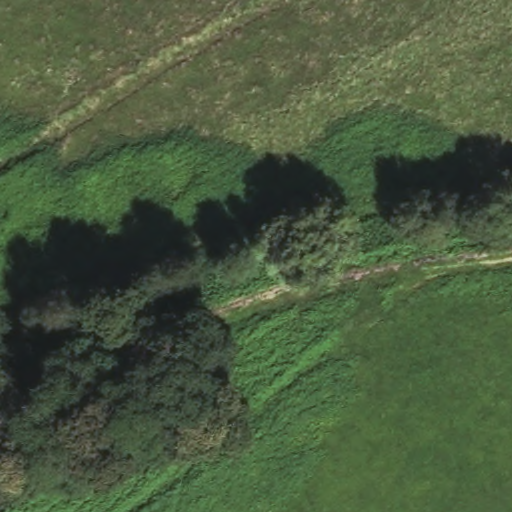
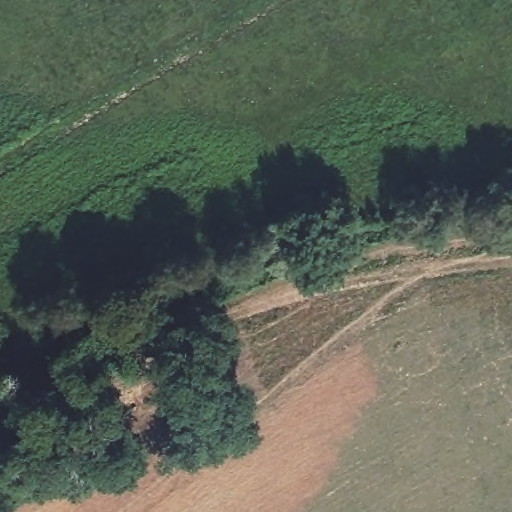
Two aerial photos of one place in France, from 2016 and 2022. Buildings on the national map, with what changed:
[]

